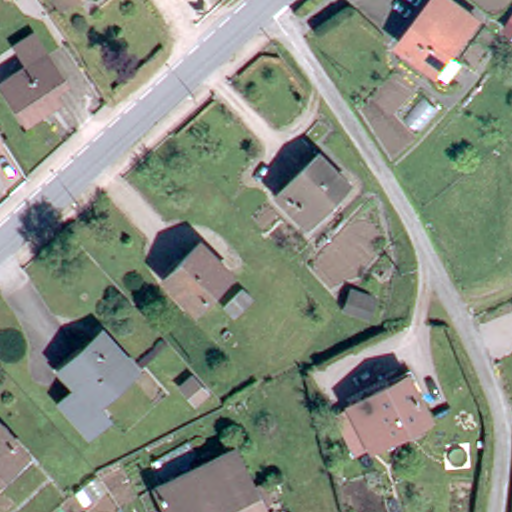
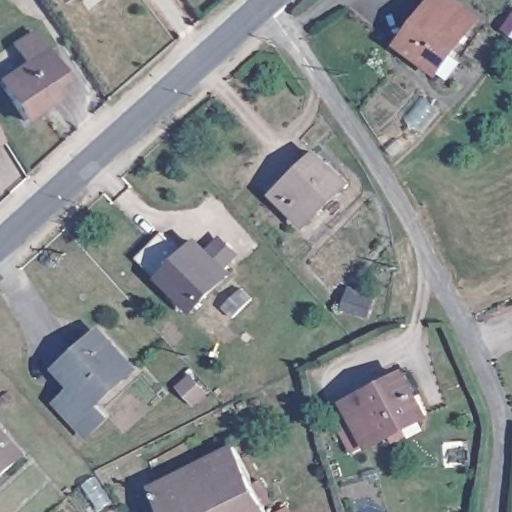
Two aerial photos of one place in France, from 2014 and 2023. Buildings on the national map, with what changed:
unchanged [(61,5),(58,0),(68,0),(61,5)]
unchanged [(444,89),(432,79),(396,53),(437,1),(472,26),(446,60),(460,71),(444,89)]
unchanged [(512,22),(512,40),(504,35),(512,22)]
unchanged [(24,64),(13,42),(31,30),(73,92),(31,124),(1,82),(24,64)]
unchanged [(0,141),(0,132),(4,139),(0,141)]
unchanged [(277,190),(280,193),(313,156),(346,185),(305,226),(289,212),(281,210),(271,198),(277,190)]
unchanged [(197,248),(228,278),(193,313),(163,281),(197,248)]
unchanged [(363,320),(344,315),(346,300),(366,304),(363,320)]
unchanged [(103,333),(136,366),(97,402),(65,370),(103,333)]
unchanged [(431,417),(387,441),(376,446),(359,455),(339,414),(354,406),(355,405),(410,377),(431,417)]
unchanged [(207,396),(196,405),(183,390),(194,381),(207,396)]
unchanged [(108,416),(91,433),(64,405),(81,389),(108,416)]
unchanged [(25,452),(0,474),(0,423),(25,452)]
unchanged [(156,485),(236,445),(243,460),(261,492),(266,490),(271,500),(266,503),(270,511),(278,507),(280,512),(170,512),(169,511),(156,485)]

